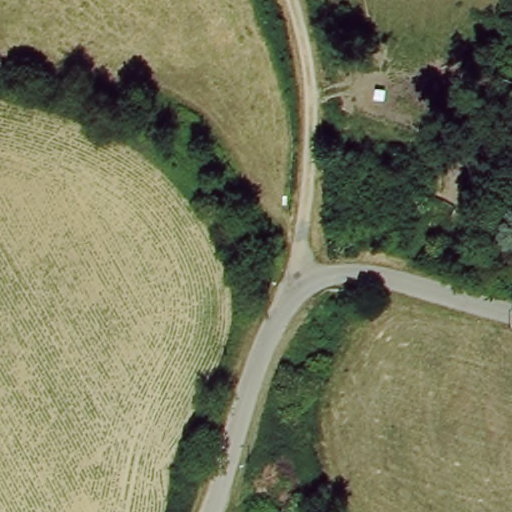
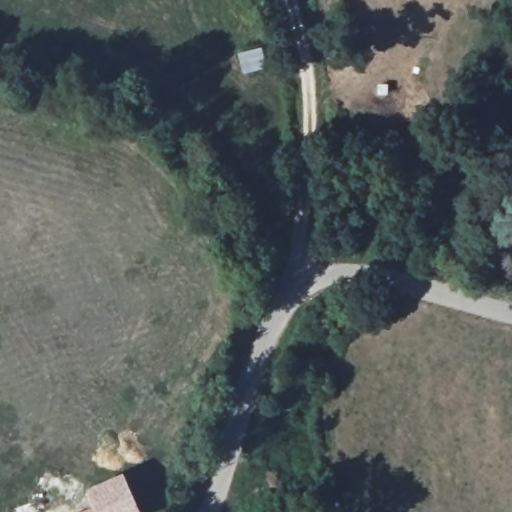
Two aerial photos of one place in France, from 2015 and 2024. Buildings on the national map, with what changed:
new [(90,505),(83,491),(123,473),(141,512),(76,512),(90,505)]

